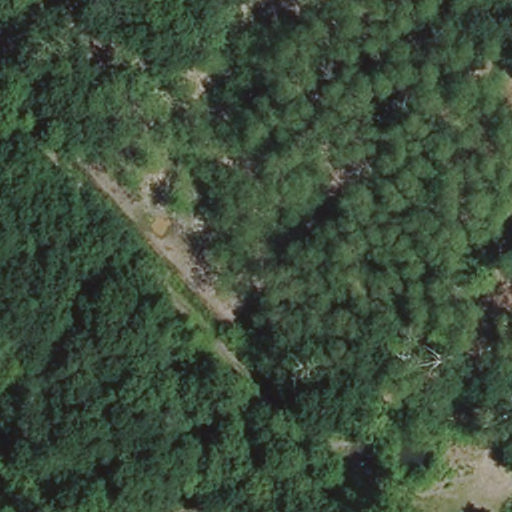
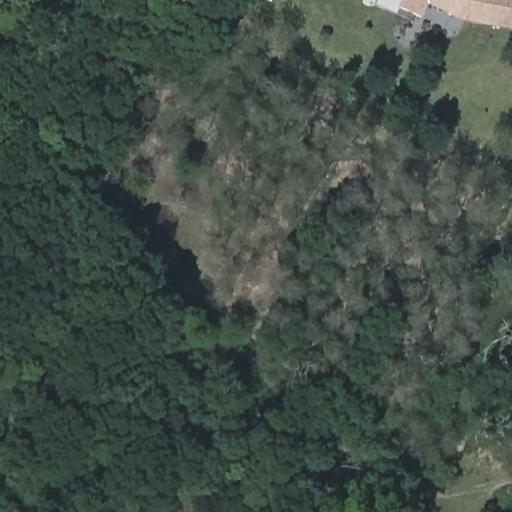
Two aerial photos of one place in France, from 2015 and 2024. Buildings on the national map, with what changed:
new [(429,1),(421,17),(402,7),(405,0),(467,0),(459,16),(429,1)]
new [(512,0),(512,28),(465,19),(459,16),(467,0),(512,0)]

